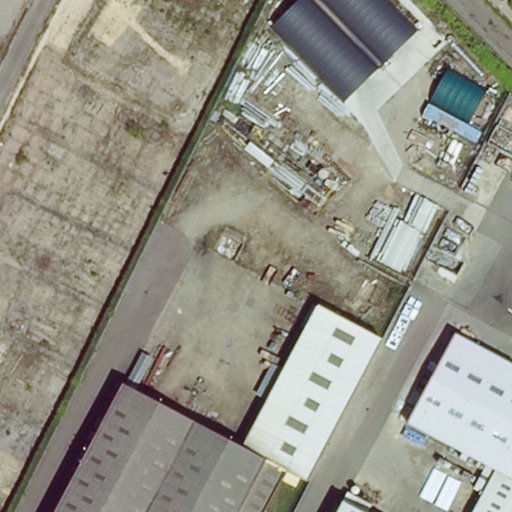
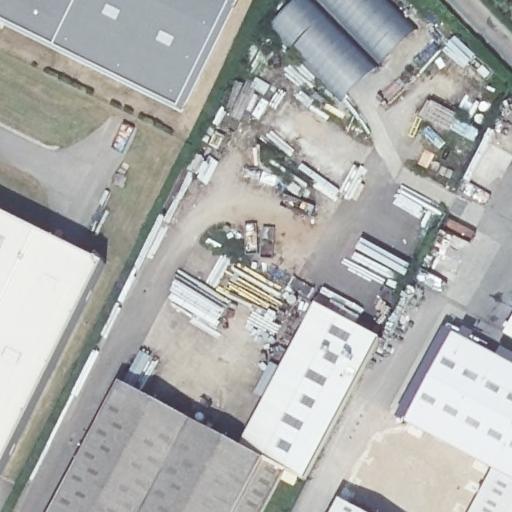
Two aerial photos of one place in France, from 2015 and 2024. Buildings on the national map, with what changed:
new [(0,22),(0,0),(84,0),(59,51),(0,22)]
new [(236,0),(183,110),(59,51),(84,0),(236,0)]
new [(272,25),(298,0),(307,0),(375,70),(345,98),(272,25)]
new [(383,62),(324,0),(384,0),(415,31),(383,62)]
new [(0,478),(0,212),(105,263),(0,478)]
unchanged [(262,512),(53,512),(124,381),(243,445),(319,303),(380,335),(305,477),(285,467),(262,512)]
unchanged [(310,487),(334,500),(383,408),(412,424),(464,331),(512,357),(512,512),(297,512),(310,487)]

